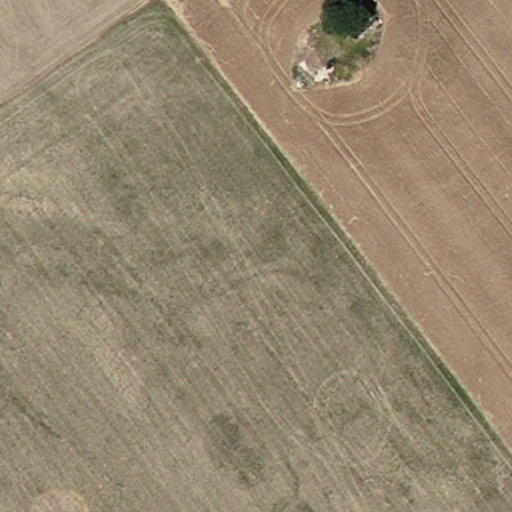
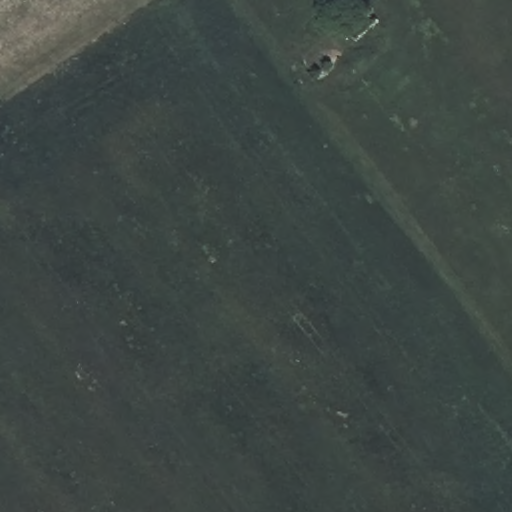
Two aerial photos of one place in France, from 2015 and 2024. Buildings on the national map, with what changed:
unchanged [(381,29),(357,47),(345,32),(367,14),(381,29)]

